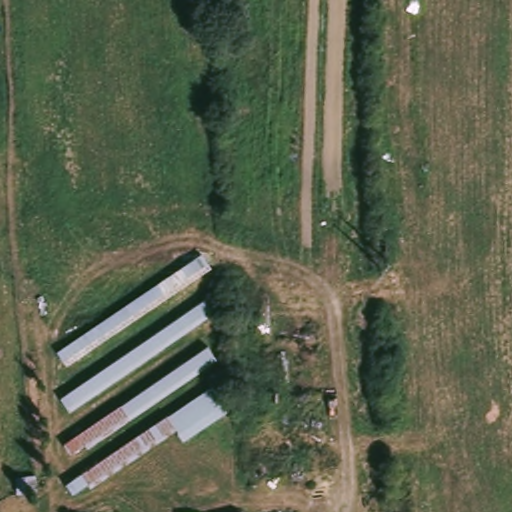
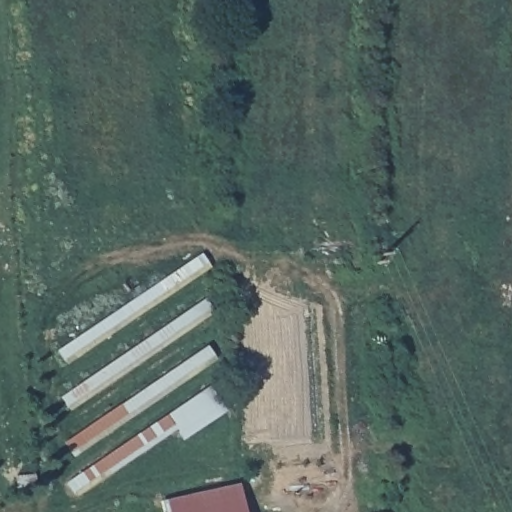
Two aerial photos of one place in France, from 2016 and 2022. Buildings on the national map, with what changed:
unchanged [(67,364),(57,351),(202,251),(212,266),(67,364)]
unchanged [(207,299),(220,314),(71,415),(61,398),(207,299)]
unchanged [(209,345),(220,360),(89,451),(86,448),(70,455),(64,442),(209,345)]
unchanged [(212,387),(230,413),(186,442),(178,433),(77,501),(68,484),(212,387)]
new [(162,512),(159,500),(239,483),(246,512),(162,512)]

